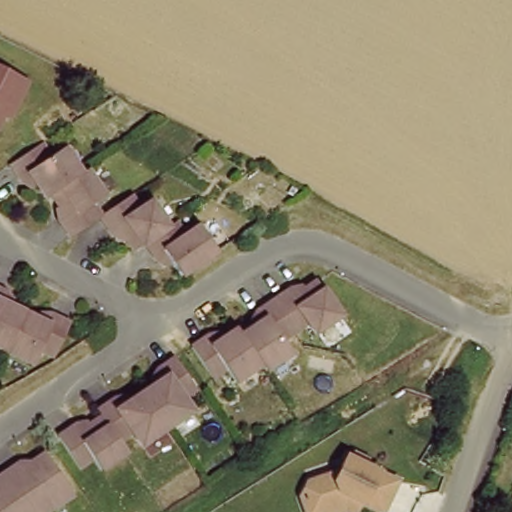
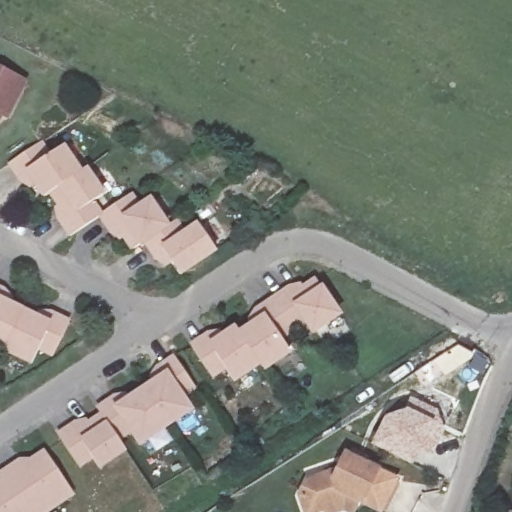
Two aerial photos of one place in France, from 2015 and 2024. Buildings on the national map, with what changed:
unchanged [(21,80),(2,114),(0,113),(0,69),(21,80)]
unchanged [(47,198),(40,203),(25,181),(16,186),(3,168),(35,147),(46,164),(58,155),(75,176),(47,198)]
unchanged [(80,173),(99,199),(87,207),(98,222),(68,242),(56,225),(63,221),(47,198),(75,176),(80,173)]
unchanged [(131,254),(116,233),(109,237),(98,222),(128,200),(138,212),(148,205),(166,230),(145,245),(131,254)]
unchanged [(175,224),(184,236),(197,227),(217,253),(180,277),(165,257),(156,262),(145,245),(166,230),(175,224)]
unchanged [(287,282),(291,286),(313,273),(337,307),(311,324),(305,314),(291,323),(272,293),(287,282)]
unchanged [(277,332),(287,345),(263,362),(259,359),(237,328),(258,314),(253,306),(272,293),(291,323),(277,332)]
unchanged [(15,312),(0,344),(0,304),(15,312)]
unchanged [(40,323),(45,315),(63,323),(47,357),(33,350),(25,366),(0,353),(0,344),(15,312),(40,323)]
unchanged [(259,359),(235,375),(225,362),(210,371),(188,341),(205,329),(211,337),(233,322),(237,328),(259,359)]
unchanged [(158,368),(153,361),(171,349),(193,379),(179,388),(190,403),(165,419),(137,382),(158,368)]
unchanged [(140,438),(129,424),(116,433),(98,408),(94,402),(111,390),(116,397),(137,382),(165,419),(140,438)]
new [(385,417),(405,408),(409,395),(437,410),(442,419),(445,423),(427,464),(417,459),(413,467),(369,446),(385,417)]
unchanged [(125,445),(99,463),(90,451),(76,460),(55,430),(71,420),(75,424),(98,408),(116,433),(125,445)]
unchanged [(8,466),(20,457),(25,463),(46,448),(76,490),(45,512),(43,512),(8,466)]
unchanged [(339,508),(328,512),(321,512),(320,508),(308,512),(301,512),(295,495),(303,480),(335,470),(342,456),(391,482),(375,512),(353,501),(351,506),(348,512),(347,512),(339,508)]
unchanged [(8,466),(43,512),(0,512),(0,472),(8,466)]

